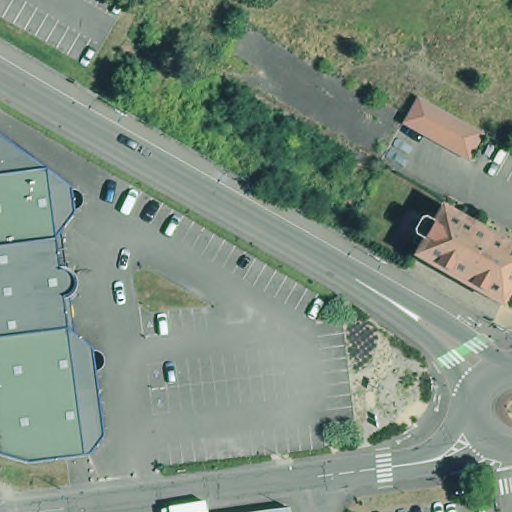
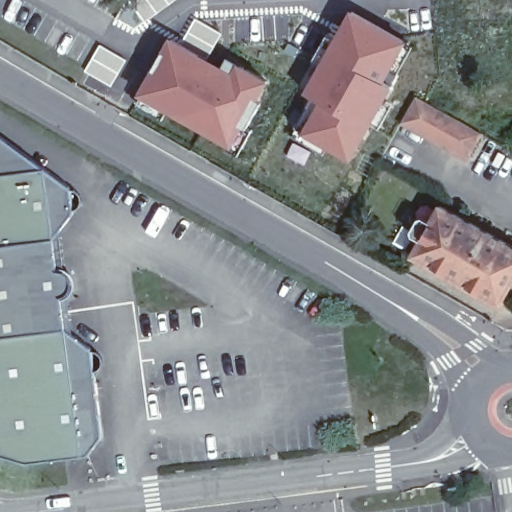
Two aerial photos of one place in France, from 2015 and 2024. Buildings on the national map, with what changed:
demolished [(219,1),(221,25),(193,29),(193,36),(185,36),(184,30),(154,33),(152,8),(219,1)]
new [(346,163),(295,137),(310,107),(296,99),(346,11),(411,48),(346,163)]
new [(233,159),(222,153),(225,144),(167,110),(163,119),(134,102),(168,40),(198,57),(195,63),(216,74),(225,59),(272,79),(233,159)]
unchanged [(485,136),(471,162),(405,126),(419,100),(485,136)]
unchanged [(31,465),(0,457),(0,138),(74,191),(76,211),(55,242),(60,274),(71,277),(74,288),(71,299),(62,301),(65,333),(94,349),(106,434),(87,459),(31,465)]
unchanged [(504,304),(418,254),(446,206),(512,243),(512,289),(504,304)]
demolished [(287,504),(288,512),(226,512),(269,506),(287,504)]

